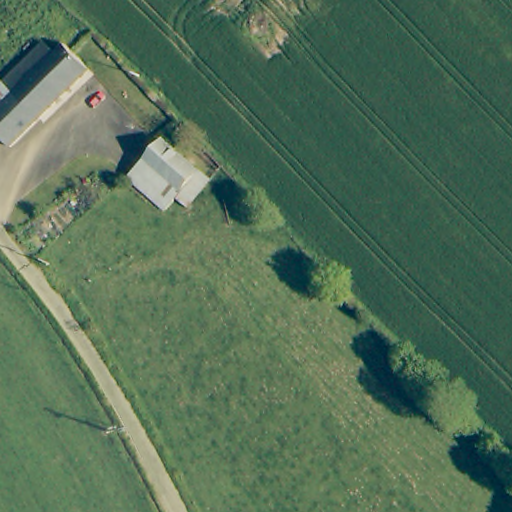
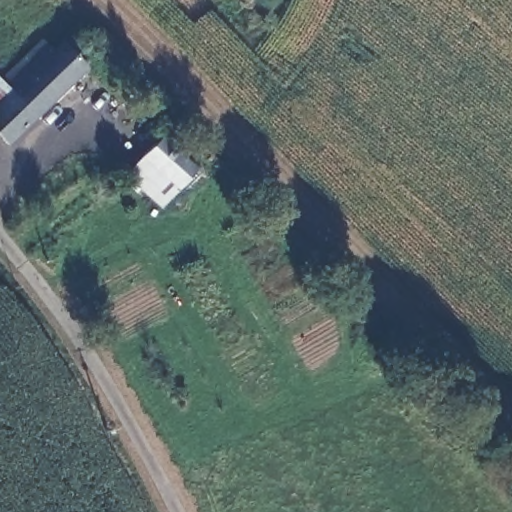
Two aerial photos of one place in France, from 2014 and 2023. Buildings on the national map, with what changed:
unchanged [(55,50),(65,40),(89,65),(8,145),(0,137),(0,107),(17,90),(6,77),(46,40),(55,50)]
unchanged [(0,107),(0,82),(6,77),(17,90),(0,107)]
unchanged [(187,199),(175,188),(157,205),(125,173),(161,137),(194,170),(205,181),(187,199)]

